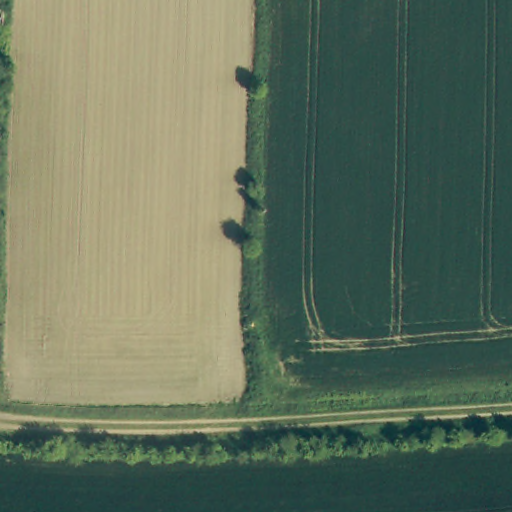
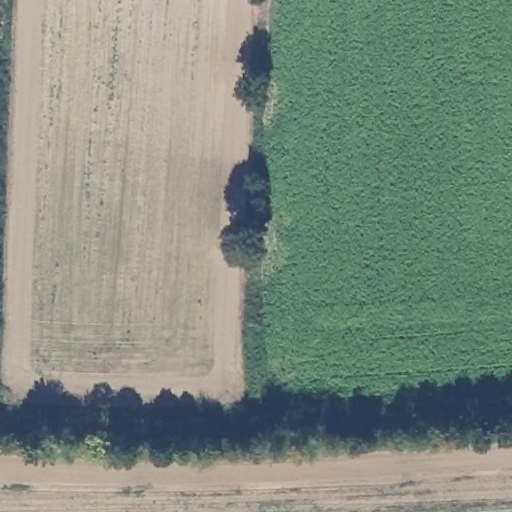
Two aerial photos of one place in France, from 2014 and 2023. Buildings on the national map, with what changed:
[]

